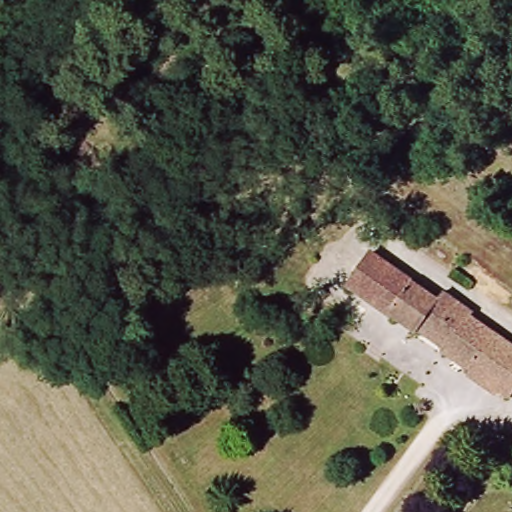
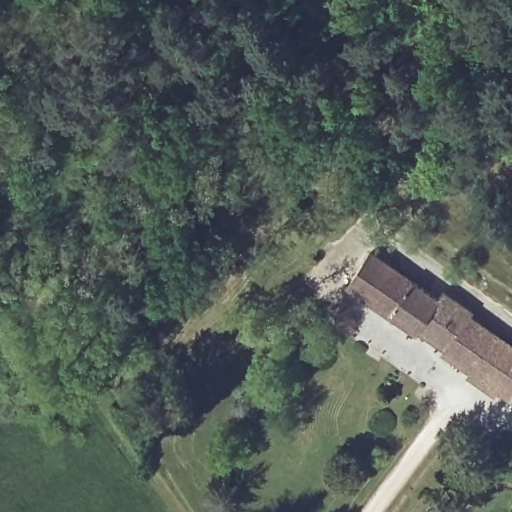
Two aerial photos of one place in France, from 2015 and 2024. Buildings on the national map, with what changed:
unchanged [(441,301),(445,296),(473,313),(470,319),(512,347),(512,398),(511,400),(447,355),(452,346),(424,328),(417,335),(350,288),(373,257),(441,301)]

